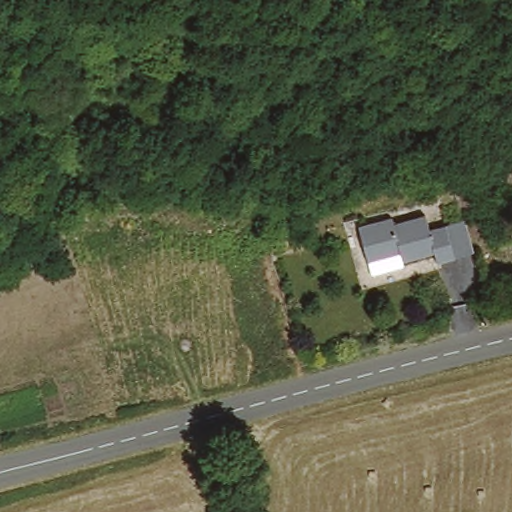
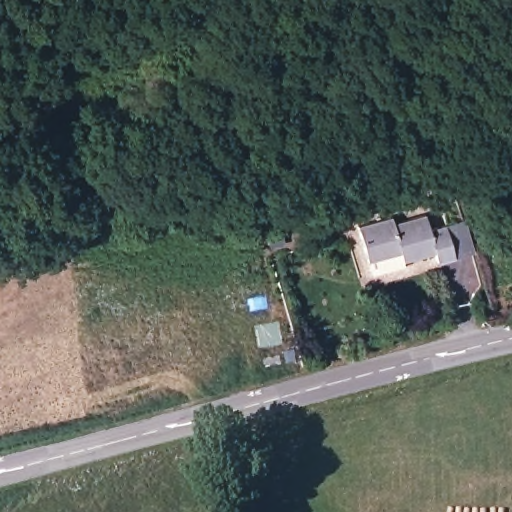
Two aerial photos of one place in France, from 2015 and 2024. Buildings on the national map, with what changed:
unchanged [(429,254),(397,261),(394,253),(364,260),(358,229),(388,222),(389,227),(421,219),(424,230),(459,222),(467,257),(433,266),(429,254)]

